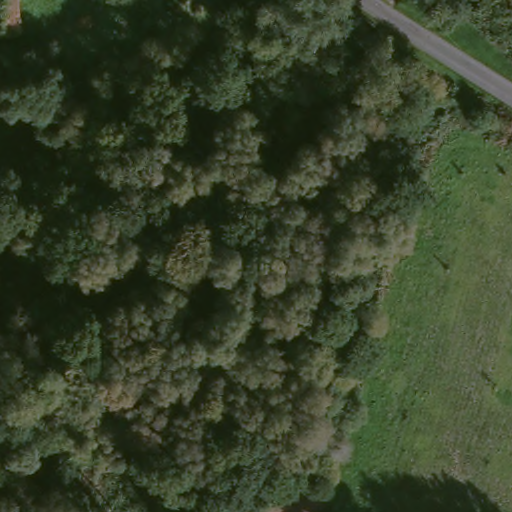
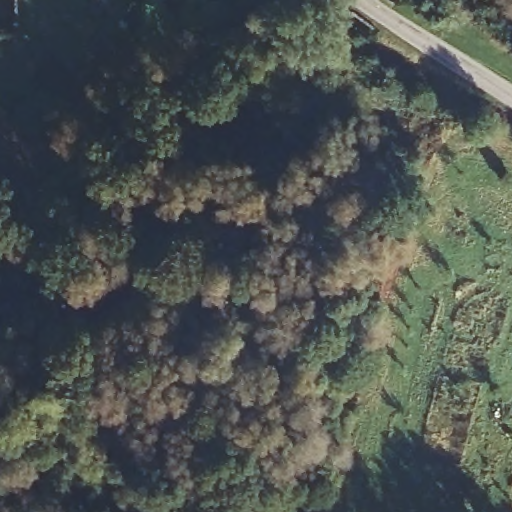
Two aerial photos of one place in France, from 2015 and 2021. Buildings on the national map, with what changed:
unchanged [(0,35),(0,0),(18,0),(23,32),(0,35)]

